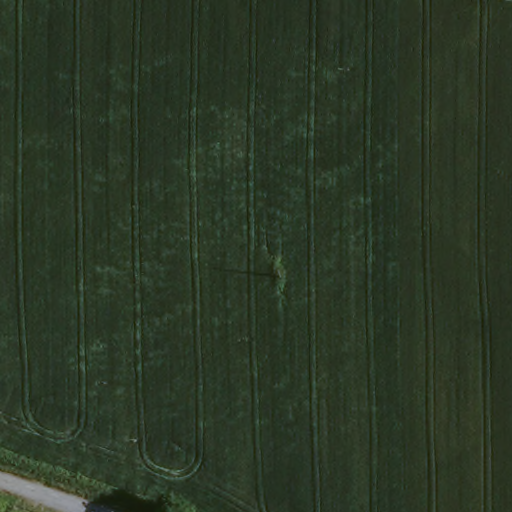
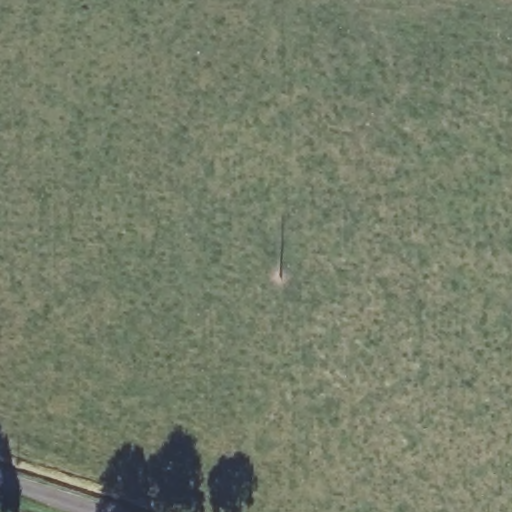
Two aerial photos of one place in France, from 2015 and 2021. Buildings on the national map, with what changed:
[]

